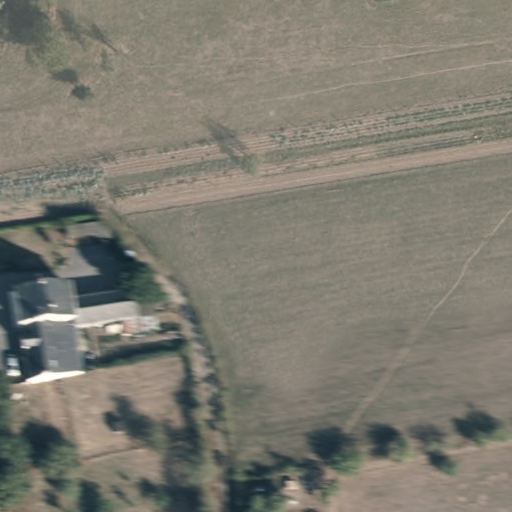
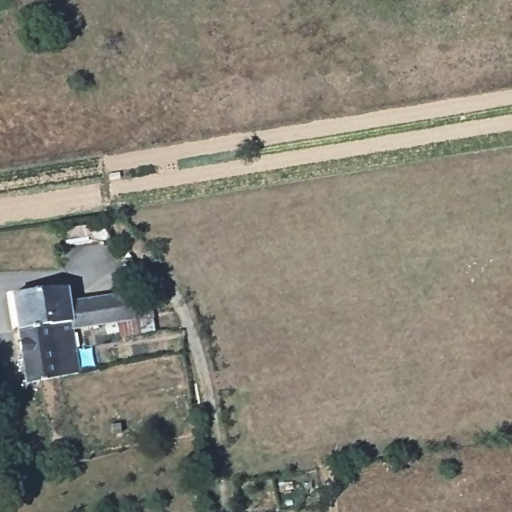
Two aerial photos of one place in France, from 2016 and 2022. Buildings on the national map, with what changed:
unchanged [(81,367),(59,372),(46,321),(19,327),(11,292),(47,286),(64,286),(67,300),(125,287),(128,297),(146,292),(149,310),(153,326),(121,334),(116,317),(73,329),(81,367)]
unchanged [(31,378),(19,327),(46,321),(59,372),(31,378)]

